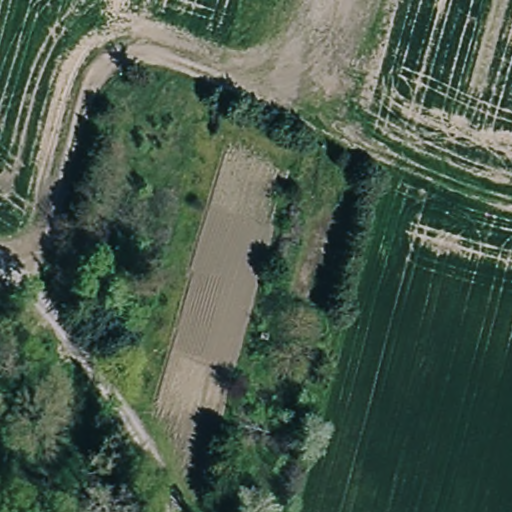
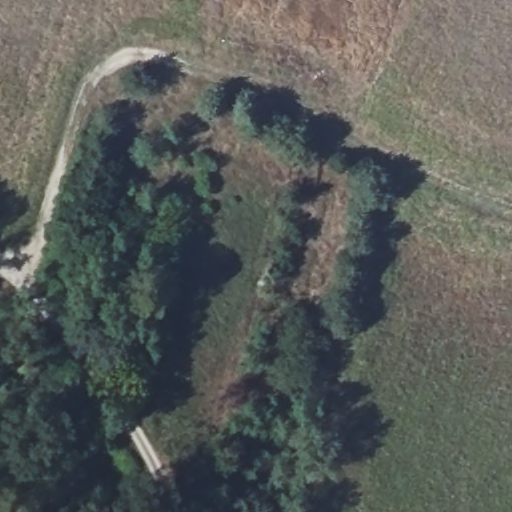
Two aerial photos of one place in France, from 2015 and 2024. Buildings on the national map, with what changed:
unchanged [(279,512),(257,512),(262,495),(282,501),(279,512)]

